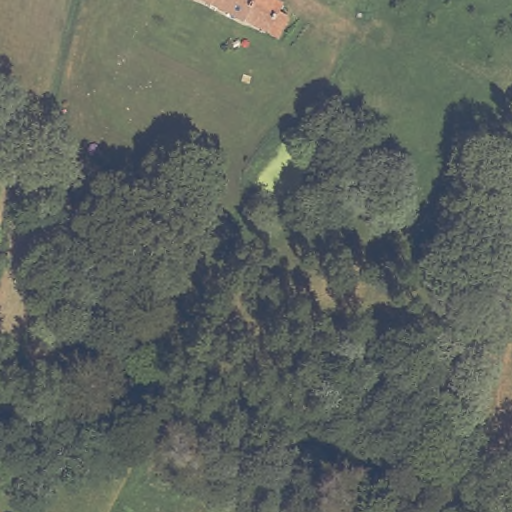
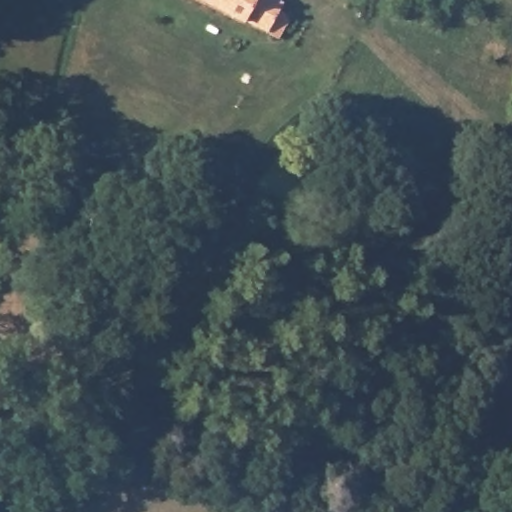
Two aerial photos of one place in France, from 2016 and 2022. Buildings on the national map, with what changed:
unchanged [(281,2),(287,6),(293,10),(283,35),(216,0),(281,0),(281,2)]

